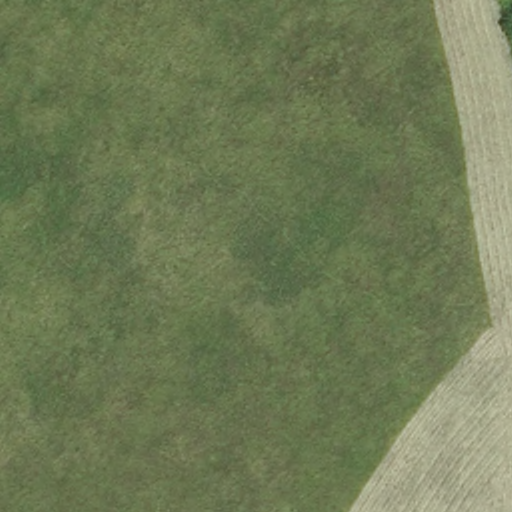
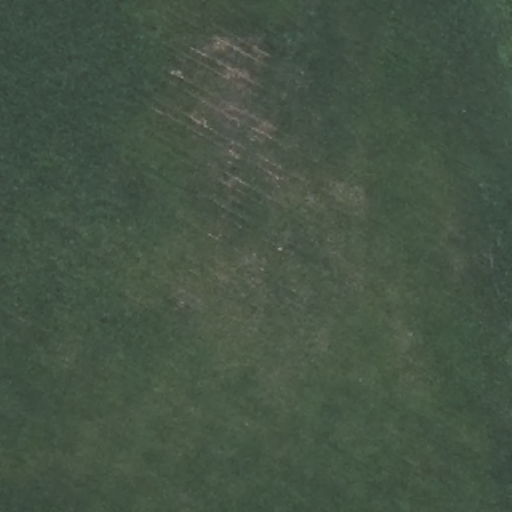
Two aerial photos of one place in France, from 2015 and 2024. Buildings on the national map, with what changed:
[]

